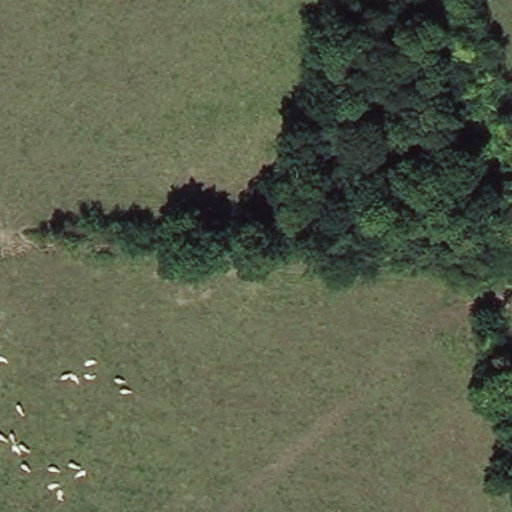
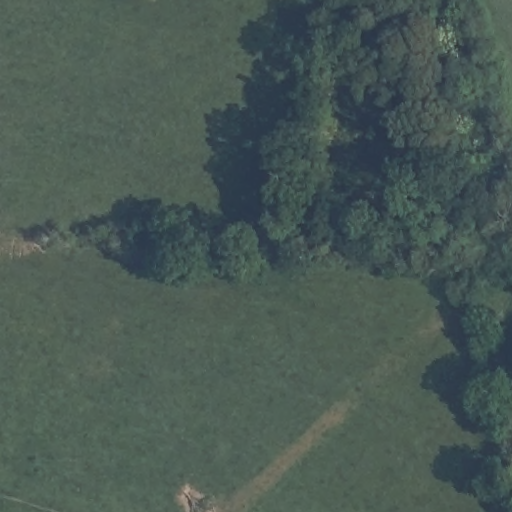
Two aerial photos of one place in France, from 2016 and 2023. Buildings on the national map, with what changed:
[]

